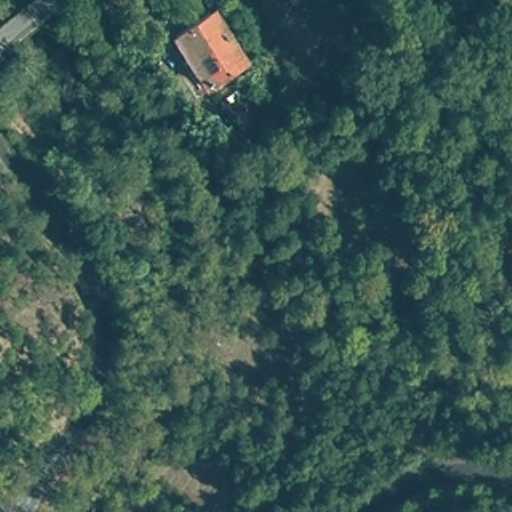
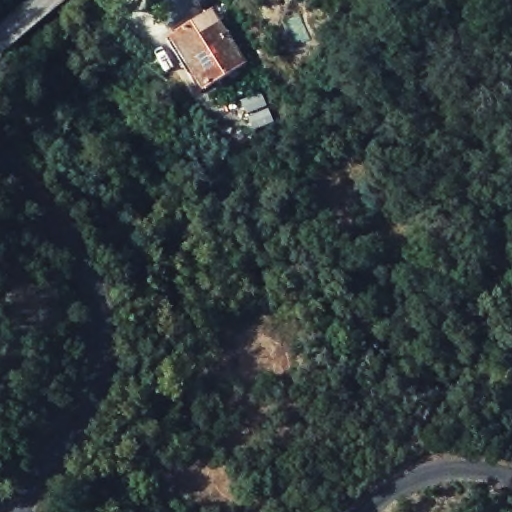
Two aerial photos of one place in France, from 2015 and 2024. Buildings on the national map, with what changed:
unchanged [(162,34),(206,8),(233,42),(245,57),(201,87),(198,83),(162,34)]

